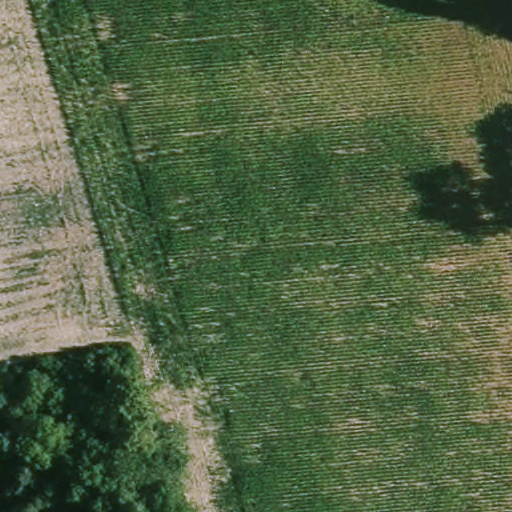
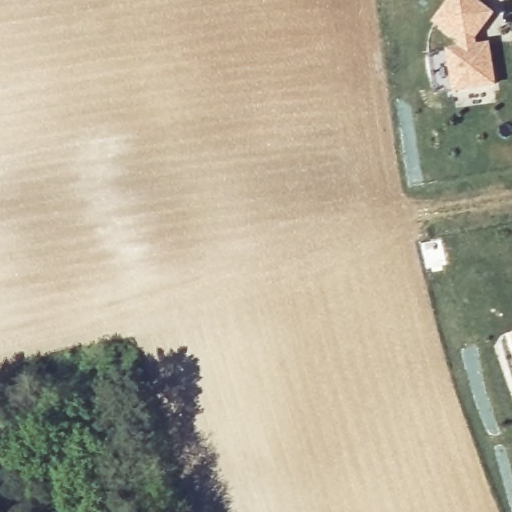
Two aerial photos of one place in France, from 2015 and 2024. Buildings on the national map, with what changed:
new [(462,47),(461,39),(436,20),(451,0),(477,0),(492,11),(474,36),(476,45),(489,43),(495,83),(455,89),(436,91),(430,52),(449,49),(462,47)]
new [(511,337),(512,337),(512,340),(511,337)]

